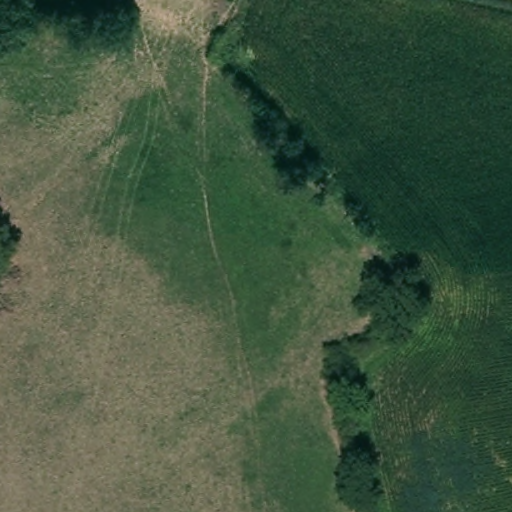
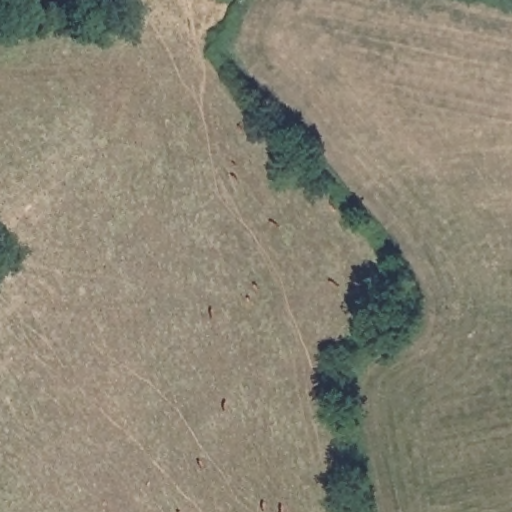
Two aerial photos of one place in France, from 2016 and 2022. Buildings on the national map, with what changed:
[]

